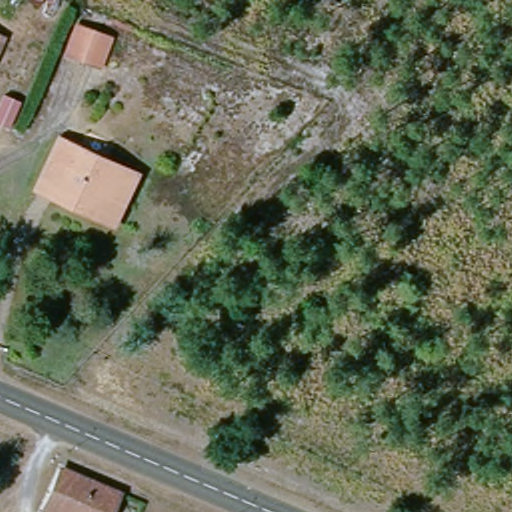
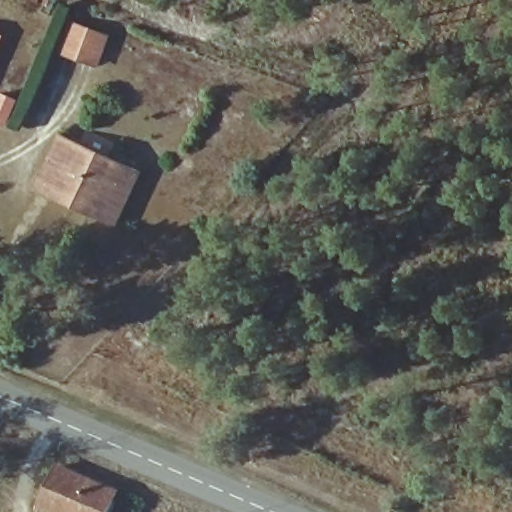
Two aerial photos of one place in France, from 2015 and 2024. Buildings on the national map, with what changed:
unchanged [(102,81),(71,69),(85,40),(116,52),(102,81)]
unchanged [(0,44),(0,41),(1,41),(0,44)]
unchanged [(120,225),(46,194),(67,140),(142,170),(120,225)]
unchanged [(113,512),(53,512),(47,510),(64,467),(121,491),(113,512)]

